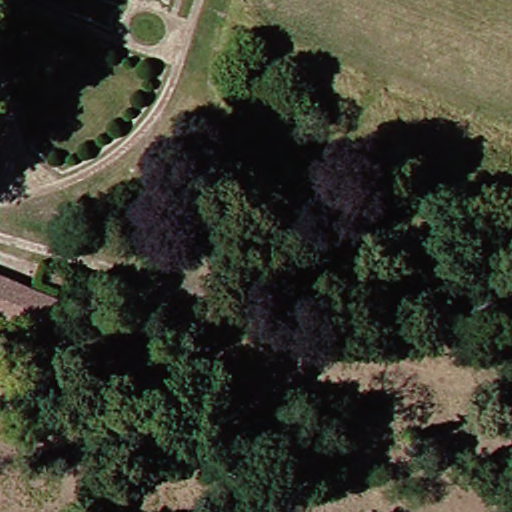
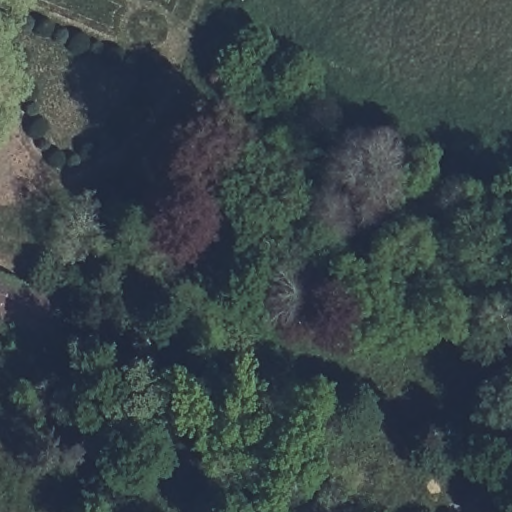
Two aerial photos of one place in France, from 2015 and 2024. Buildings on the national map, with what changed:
unchanged [(39,327),(0,313),(0,275),(6,277),(50,295),(39,327)]

